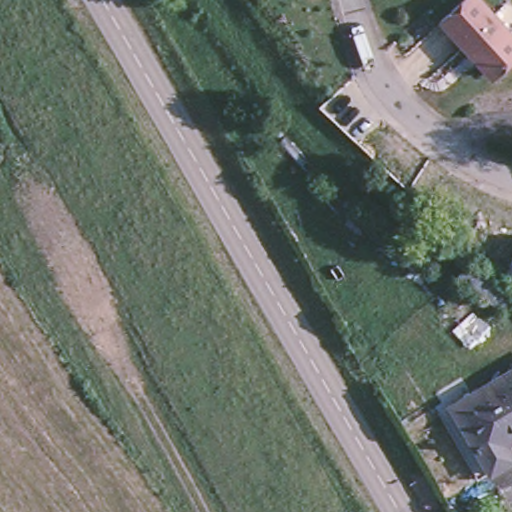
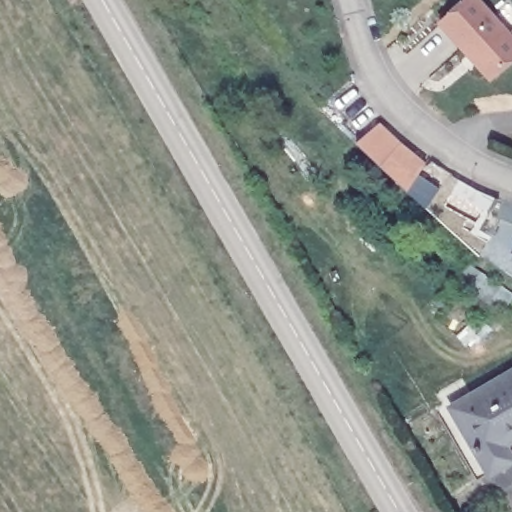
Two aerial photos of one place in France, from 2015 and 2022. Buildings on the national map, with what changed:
unchanged [(465,0),(482,0),(495,15),(512,34),(512,61),(497,75),(489,74),(479,64),(470,53),(441,21),(465,0)]
new [(401,141),(427,163),(408,191),(356,142),(380,121),(401,141)]
unchanged [(512,265),(512,275),(510,273),(512,265)]
unchanged [(512,446),(512,462),(494,471),(453,401),(512,367),(512,438),(509,440),(512,446)]

